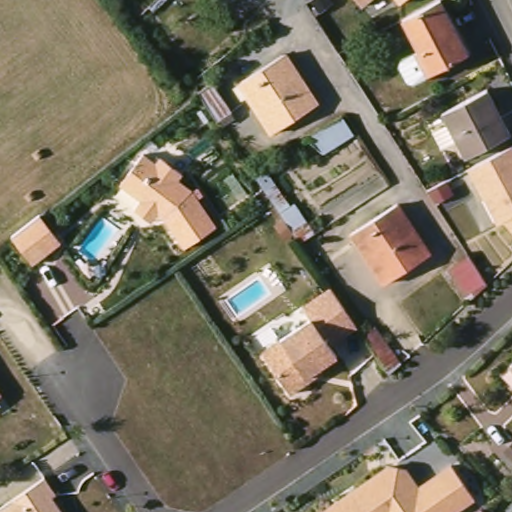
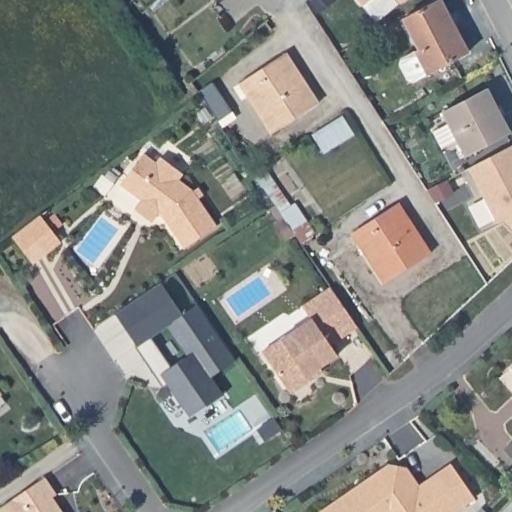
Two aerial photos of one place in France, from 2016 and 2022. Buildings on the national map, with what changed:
unchanged [(354,0),(367,0),(359,6),(354,0)]
unchanged [(390,0),(400,0),(394,5),(390,0)]
unchanged [(418,82),(412,80),(404,65),(406,60),(424,50),(408,19),(445,0),(446,0),(473,53),(432,74),(418,82)]
unchanged [(323,104),(278,133),(245,83),(290,54),(323,104)]
unchanged [(213,83),(232,112),(218,122),(198,92),(213,83)]
unchanged [(512,127),(512,135),(471,157),(447,112),(492,89),(512,127)]
unchanged [(355,135),(324,154),(312,135),(342,116),(355,135)]
unchanged [(505,220),(495,225),(469,170),(512,149),(512,227),(505,220)]
unchanged [(135,210),(142,201),(120,184),(143,153),(156,162),(160,157),(182,174),(178,180),(192,190),(216,226),(184,247),(163,217),(158,214),(152,222),(135,210)]
unchanged [(291,206),(295,202),(315,233),(300,243),(253,173),(264,166),(291,206)]
unchanged [(430,254),(385,283),(352,233),(397,204),(430,254)]
unchanged [(24,227),(39,215),(60,246),(31,265),(11,237),(24,227)]
unchanged [(468,302),(447,270),(469,256),(480,249),(489,263),(478,270),(487,284),(468,302)]
new [(154,375),(135,347),(136,346),(114,313),(175,272),(235,361),(210,377),(223,395),(190,417),(167,384),(162,387),(154,375)]
unchanged [(309,380),(290,393),(262,352),(311,318),(302,306),(330,287),(345,309),(357,327),(330,345),(337,356),(319,367),(322,372),(309,380)]
unchanged [(401,362),(389,374),(362,335),(375,326),(401,362)]
unchanged [(0,394),(0,381),(6,390),(0,394)]
unchanged [(505,451),(512,444),(512,458),(505,451)]
unchanged [(399,458),(418,487),(433,477),(451,465),(474,497),(453,512),(320,512),(399,458)]
unchanged [(60,492),(56,495),(68,512),(7,512),(2,506),(49,475),(60,492)]

